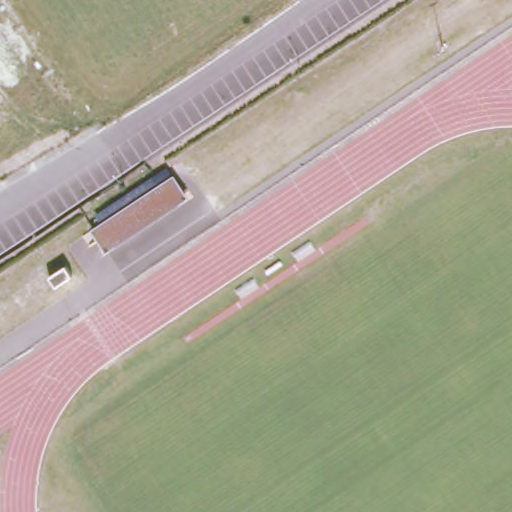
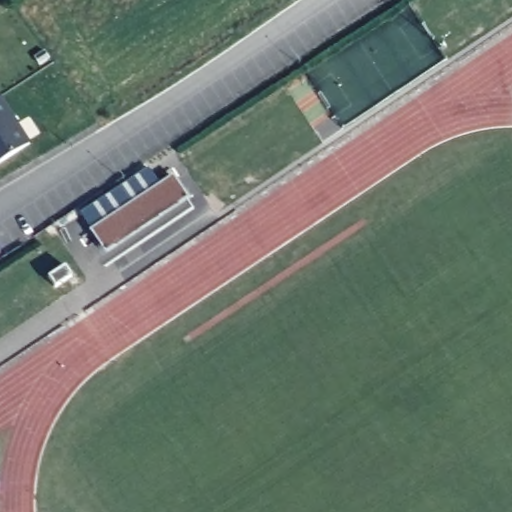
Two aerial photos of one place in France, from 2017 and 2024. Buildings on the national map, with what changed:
new [(29,142),(0,161),(0,96),(29,142)]
unchanged [(188,199),(104,249),(95,230),(177,181),(188,199)]

